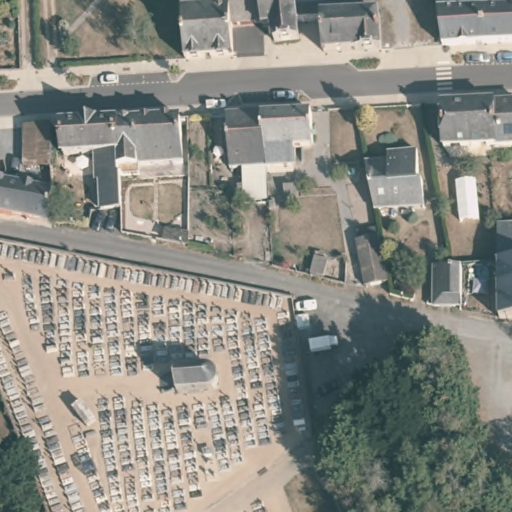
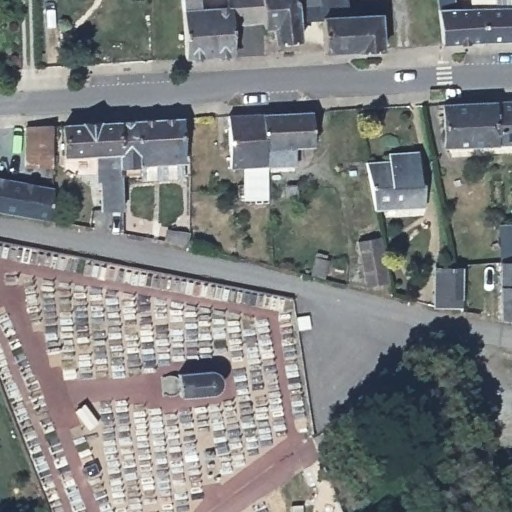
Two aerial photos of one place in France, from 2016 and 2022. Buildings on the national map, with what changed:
unchanged [(183,59),(181,0),(197,0),(198,11),(226,10),(225,0),(261,0),(263,21),(232,26),(234,57),(183,59)]
unchanged [(297,23),(298,40),(274,43),(272,27),(264,28),(263,21),(261,0),(320,0),(321,21),(297,23)]
unchanged [(377,14),(380,51),(323,54),(321,21),(320,0),(346,0),(348,16),(377,14)]
unchanged [(512,13),(512,48),(442,51),(435,0),(451,0),(453,16),(512,13)]
unchanged [(512,104),(512,145),(447,148),(443,106),(512,104)]
unchanged [(311,115),(312,149),(306,149),(307,166),(267,169),(265,117),(311,115)]
unchanged [(243,204),(241,170),(231,171),(227,119),(265,117),(267,169),(265,169),(267,203),(243,204)]
unchanged [(178,121),(181,164),(137,165),(136,177),(120,178),(118,124),(178,121)]
unchanged [(97,180),(93,180),(92,155),(62,156),(61,127),(118,124),(120,178),(121,209),(99,210),(97,180)]
unchanged [(22,134),(50,133),(51,172),(25,173),(22,134)]
unchanged [(363,169),(387,164),(386,156),(412,153),(420,188),(423,188),(428,209),(373,217),(363,169)]
unchanged [(41,193),(41,181),(52,181),(50,227),(7,219),(10,188),(41,193)]
unchanged [(7,219),(0,218),(0,186),(10,188),(7,219)]
unchanged [(170,244),(172,233),(192,238),(192,249),(170,244)]
unchanged [(497,233),(512,233),(512,267),(498,268),(497,233)]
unchanged [(387,288),(365,293),(355,246),(378,242),(387,288)]
unchanged [(512,267),(512,294),(498,294),(498,287),(498,268),(512,267)]
unchanged [(460,298),(453,299),(454,304),(430,300),(431,286),(457,282),(460,298)]
unchanged [(498,294),(512,294),(512,325),(498,326),(498,294)]
unchanged [(297,319),(310,316),(312,328),(300,330),(297,319)]
unchanged [(219,383),(214,400),(181,404),(176,376),(211,373),(219,383)]

